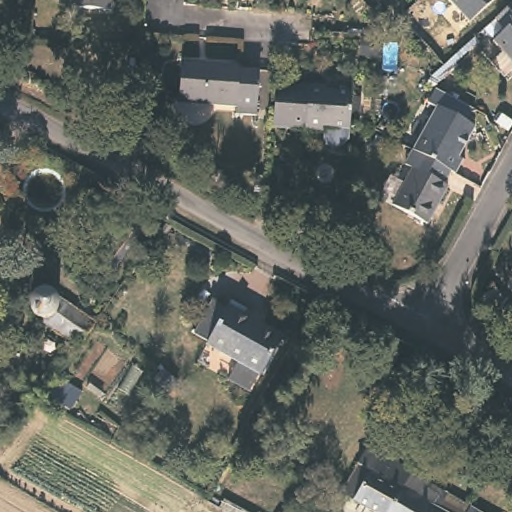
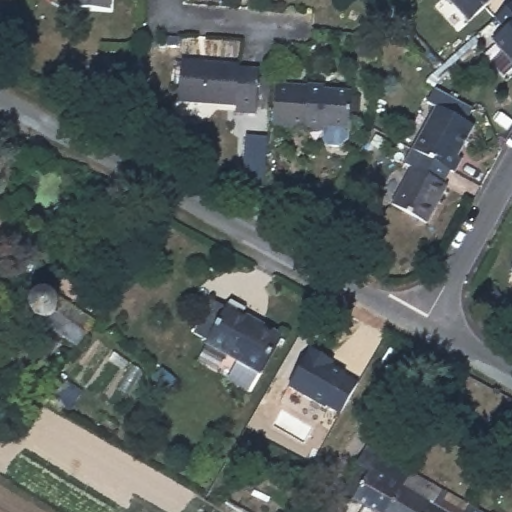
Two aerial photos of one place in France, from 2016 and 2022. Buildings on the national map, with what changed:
unchanged [(114,5),(74,1),(74,0),(114,0),(114,5)]
unchanged [(469,18),(452,0),(487,0),(469,18)]
unchanged [(508,70),(495,56),(506,46),(495,35),(506,24),(496,12),(509,0),(512,0),(512,67),(508,70)]
unchanged [(210,103),(181,101),(184,61),(213,63),(210,103)]
unchanged [(240,65),(240,68),(260,69),(257,113),(237,112),(237,104),(210,103),(213,63),(240,65)]
unchanged [(315,81),(315,80),(334,82),(333,88),(357,90),(355,123),(330,120),(330,124),(311,122),(311,121),(280,119),(282,79),(315,81)]
unchanged [(479,123),(461,155),(466,157),(460,168),(455,165),(433,154),(419,146),(441,103),(479,123)]
unchanged [(430,221),(397,202),(418,163),(411,159),(419,146),(433,154),(455,165),(447,179),(452,182),(430,221)]
unchanged [(139,232),(112,272),(102,267),(129,226),(139,232)]
unchanged [(80,345),(43,320),(39,317),(37,312),(35,306),(36,303),(39,300),(42,297),(52,295),(64,304),(95,325),(80,345)]
unchanged [(232,378),(242,361),(213,344),(215,341),(197,330),(215,302),(231,311),(233,307),(287,335),(266,374),(262,371),(252,389),(232,378)]
new [(310,349),(335,362),(332,366),(360,381),(340,415),(326,408),(325,410),(287,388),(310,349)]
unchanged [(0,438),(0,420),(9,423),(2,439),(0,438)]
unchanged [(365,463),(367,464),(377,446),(416,468),(392,512),(385,512),(348,492),(365,463)]
unchanged [(474,512),(392,512),(416,468),(478,504),(474,512)]
unchanged [(474,512),(478,504),(493,512),(474,512)]
unchanged [(295,512),(287,512),(289,509),(295,512)]

